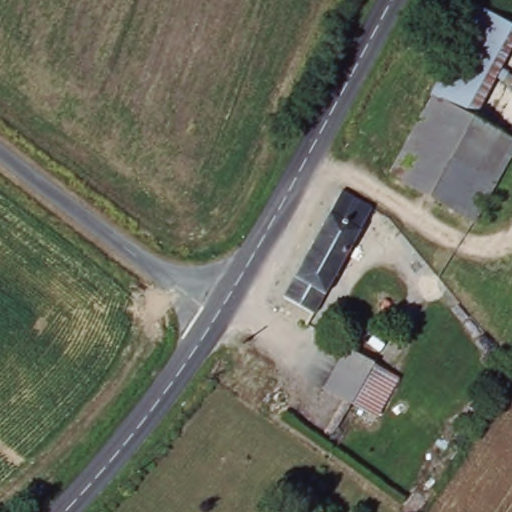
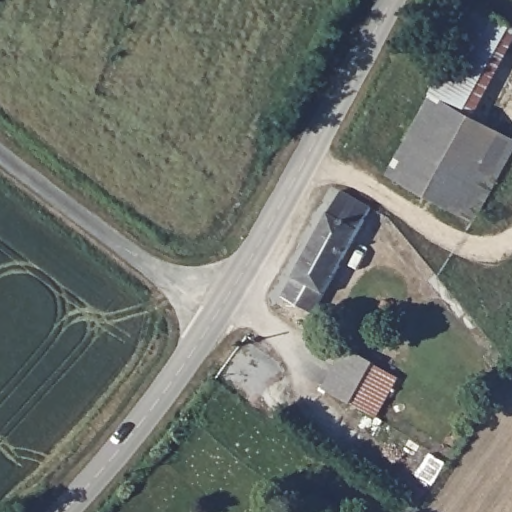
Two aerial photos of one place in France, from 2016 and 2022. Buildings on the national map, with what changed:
unchanged [(481,11),(512,27),(464,116),(433,100),(481,11)]
unchanged [(464,116),(478,123),(512,141),(512,159),(475,225),(390,180),(433,100),(464,116)]
unchanged [(274,307),(334,209),(345,192),(375,211),(366,226),(305,324),(274,307)]
unchanged [(322,385),(344,349),(373,364),(353,402),(349,400),(322,385)]
unchanged [(397,376),(376,413),(353,402),(373,364),(397,376)]

